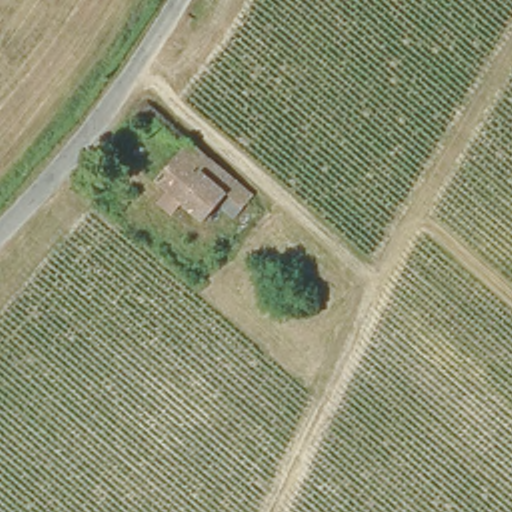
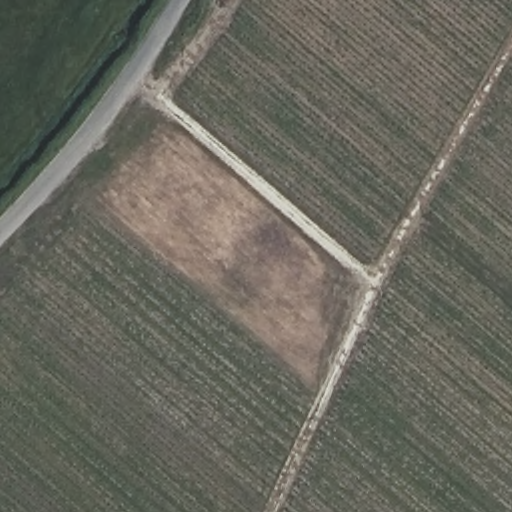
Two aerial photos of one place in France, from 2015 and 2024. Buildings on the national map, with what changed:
demolished [(250,196),(243,206),(261,223),(252,228),(234,214),(239,208),(223,196),(200,223),(188,216),(188,211),(176,206),(171,215),(157,205),(164,192),(155,183),(190,142),(250,196)]

